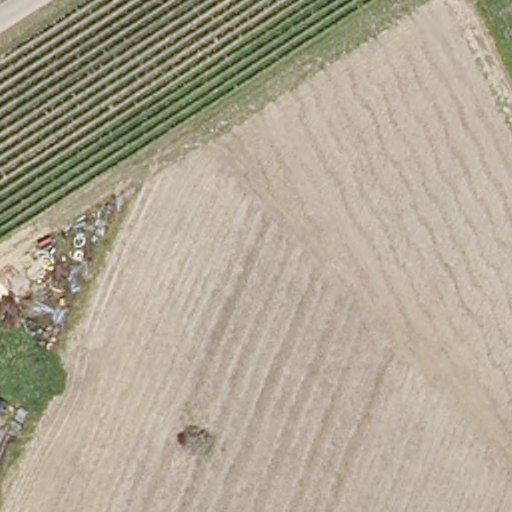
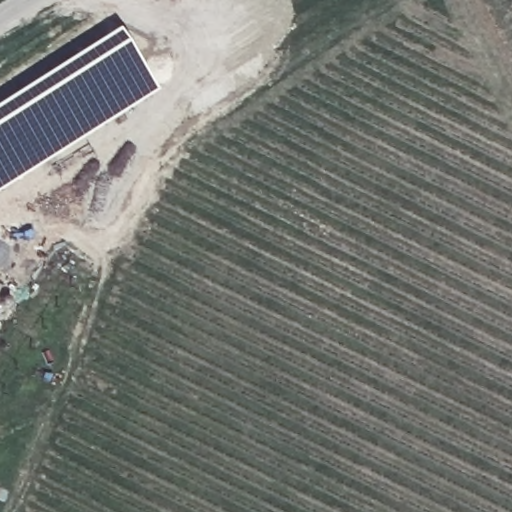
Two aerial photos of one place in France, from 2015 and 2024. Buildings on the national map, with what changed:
new [(0,187),(0,100),(114,28),(152,90),(0,187)]

